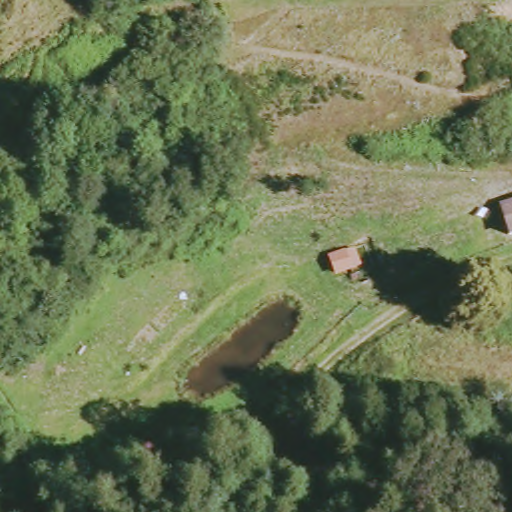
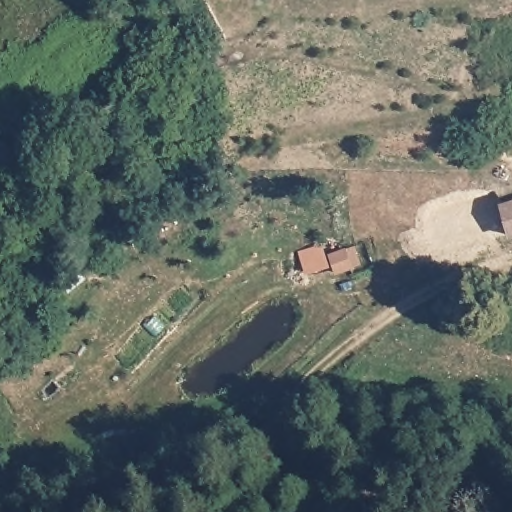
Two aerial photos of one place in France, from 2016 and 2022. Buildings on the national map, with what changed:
unchanged [(503,209),(512,205),(512,231),(503,209)]

